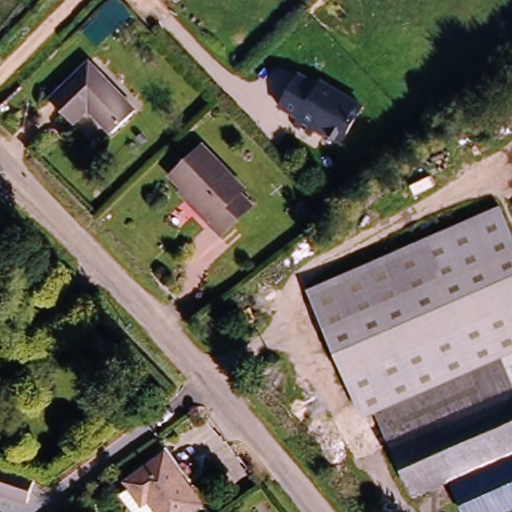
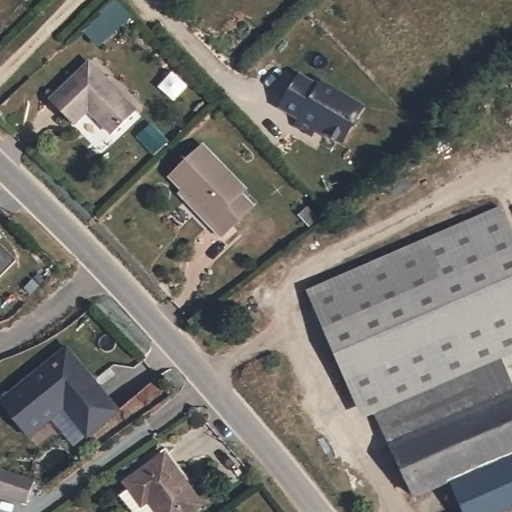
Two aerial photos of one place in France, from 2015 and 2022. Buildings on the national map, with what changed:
unchanged [(102,14),(116,0),(132,16),(117,30),(102,14)]
unchanged [(88,60),(134,107),(112,130),(88,105),(73,120),(50,96),(88,60)]
unchanged [(283,108),(299,78),(320,87),(323,82),(365,105),(345,140),(283,108)]
unchanged [(183,186),(171,173),(203,142),(245,186),(241,190),(253,203),(221,234),(197,209),(179,191),(183,186)]
unchanged [(501,206),(512,229),(512,247),(323,330),(309,290),(501,206)]
new [(0,277),(0,241),(18,258),(0,277)]
unchanged [(362,415),(323,330),(512,247),(512,348),(375,409),(362,415)]
unchanged [(390,443),(375,409),(512,348),(512,391),(390,443)]
new [(70,350),(120,414),(88,439),(66,410),(31,438),(2,402),(70,350)]
unchanged [(512,391),(512,453),(450,480),(415,495),(390,443),(512,391)]
unchanged [(138,508),(125,490),(135,483),(130,477),(168,450),(204,500),(187,512),(141,512),(138,508)]
unchanged [(503,512),(465,512),(450,480),(512,453),(512,508),(503,512)]
unchanged [(25,510),(0,501),(0,477),(33,488),(25,510)]

